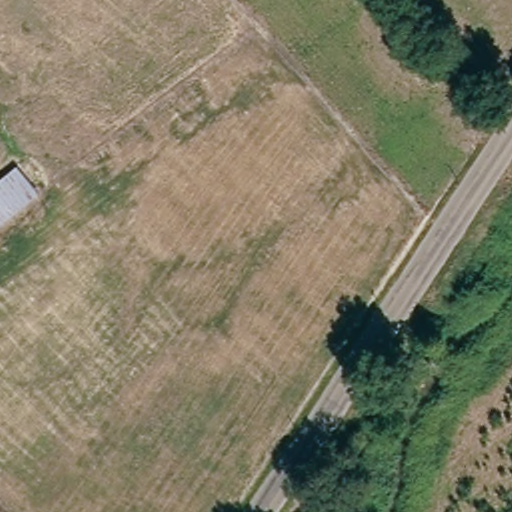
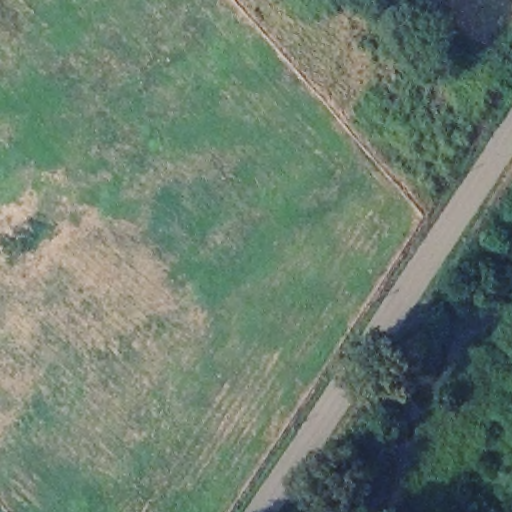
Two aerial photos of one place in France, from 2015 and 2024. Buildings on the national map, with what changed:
demolished [(41,195),(0,227),(0,181),(22,164),(41,195)]

